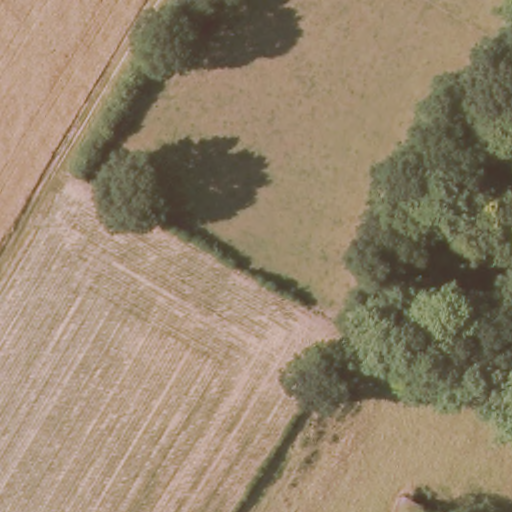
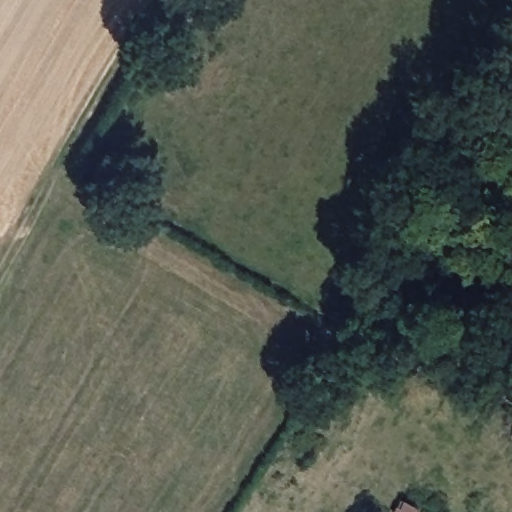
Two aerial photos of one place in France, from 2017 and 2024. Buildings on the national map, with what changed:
unchanged [(404,512),(382,512),(388,501),(406,510),(404,512)]

